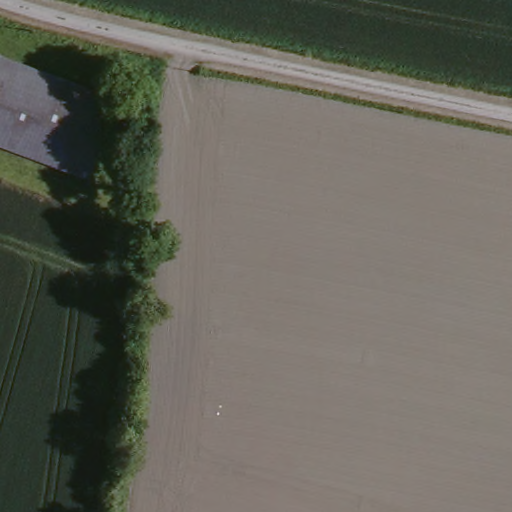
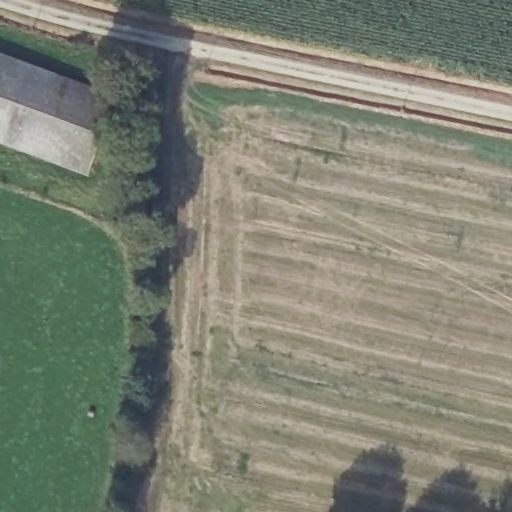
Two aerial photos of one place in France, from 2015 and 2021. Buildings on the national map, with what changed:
unchanged [(88,174),(0,142),(0,54),(116,98),(88,174)]

